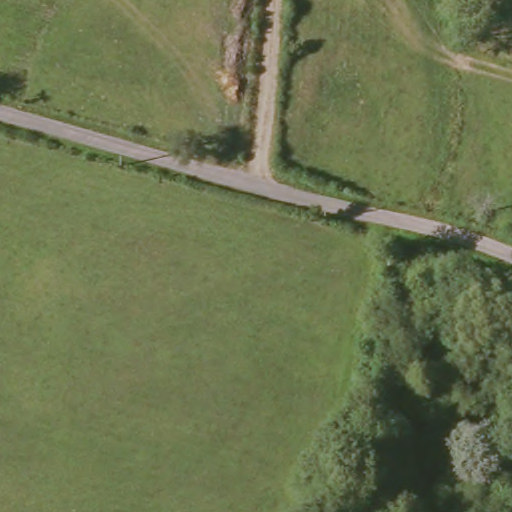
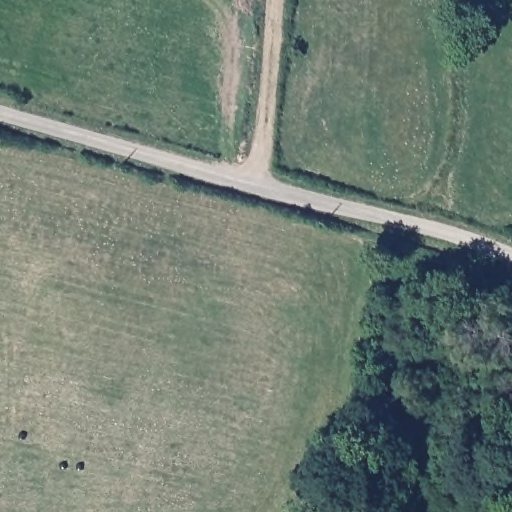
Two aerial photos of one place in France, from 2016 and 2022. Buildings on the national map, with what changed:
[]

